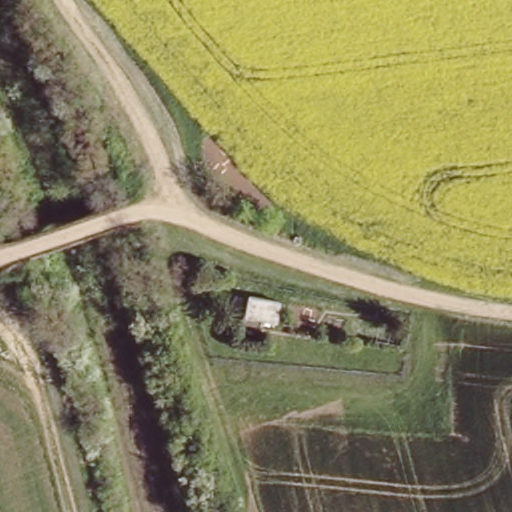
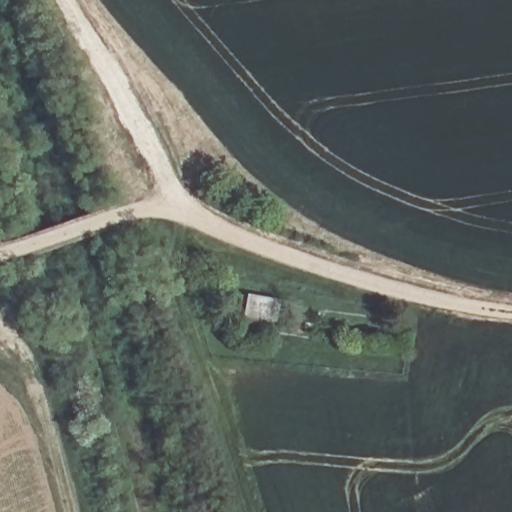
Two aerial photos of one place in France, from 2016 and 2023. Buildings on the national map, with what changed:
unchanged [(251,297),(283,302),(279,321),(248,316),(251,297)]

